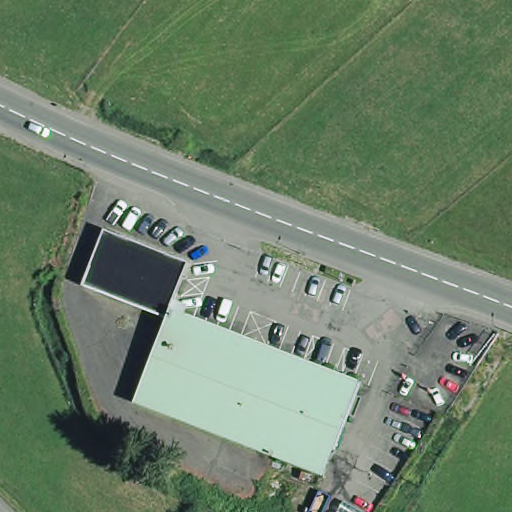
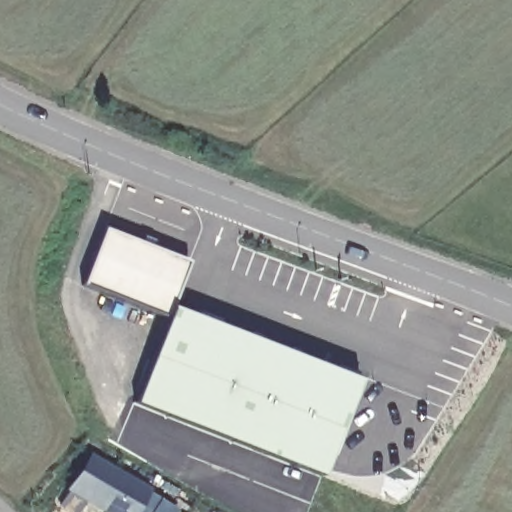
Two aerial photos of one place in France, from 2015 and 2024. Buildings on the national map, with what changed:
unchanged [(81,291),(102,235),(187,267),(169,313),(166,323),(81,291)]
unchanged [(358,386),(322,480),(133,407),(166,323),(169,313),(358,386)]
new [(81,512),(70,512),(58,504),(90,451),(153,488),(152,490),(160,496),(183,512),(101,512),(86,503),(81,512)]

